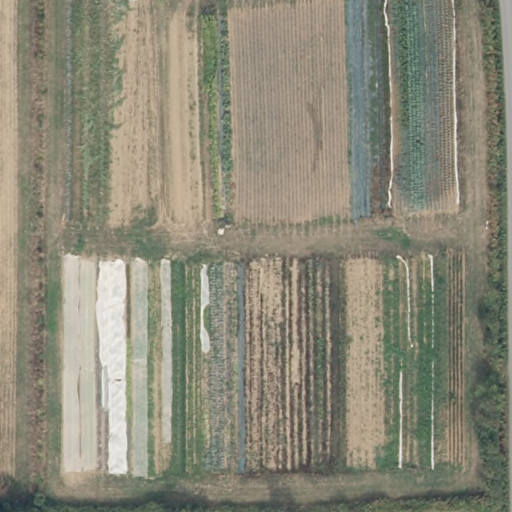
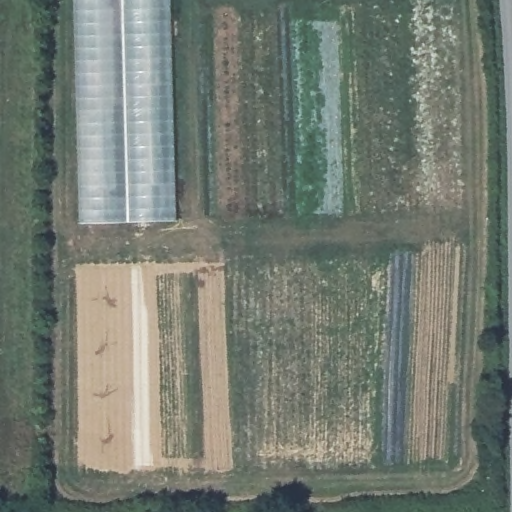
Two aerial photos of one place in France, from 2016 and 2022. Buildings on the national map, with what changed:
new [(79,224),(72,0),(169,0),(176,220),(79,224)]

